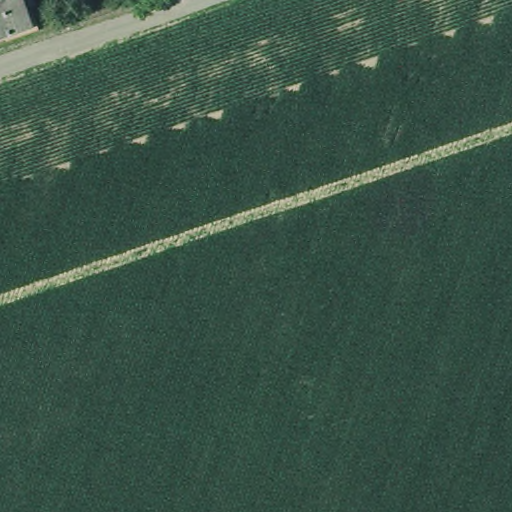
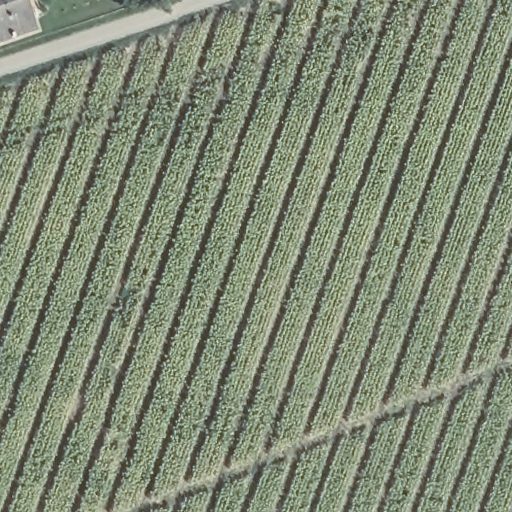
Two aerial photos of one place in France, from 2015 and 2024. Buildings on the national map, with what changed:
unchanged [(0,29),(0,0),(32,0),(38,16),(0,29)]

